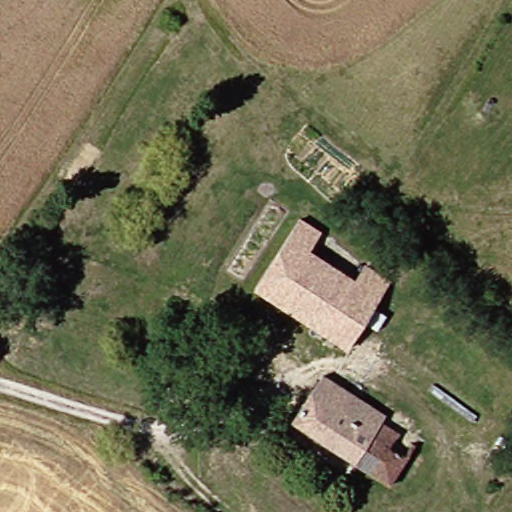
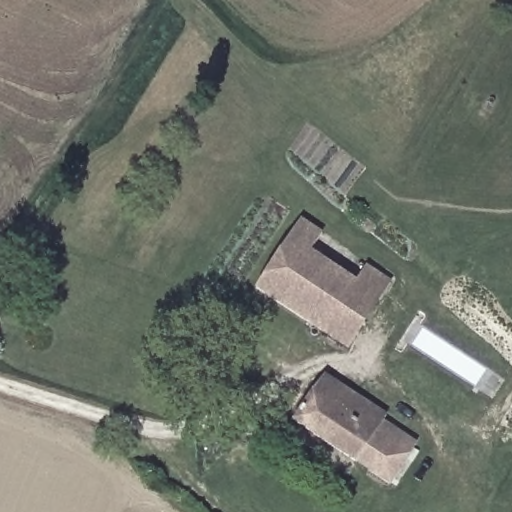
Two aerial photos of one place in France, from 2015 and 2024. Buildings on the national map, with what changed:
unchanged [(315,337),(249,291),(294,219),(315,235),(304,254),(348,284),(358,268),(381,282),(370,299),(336,351),(315,337)]
unchanged [(378,426),(412,450),(386,488),(287,423),(305,395),(313,383),(336,391),(381,422),(378,426)]

